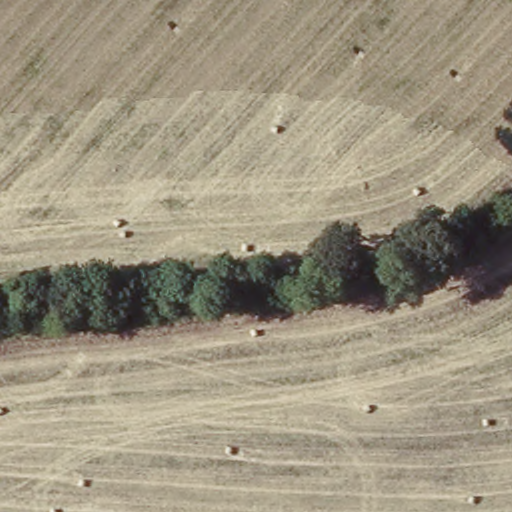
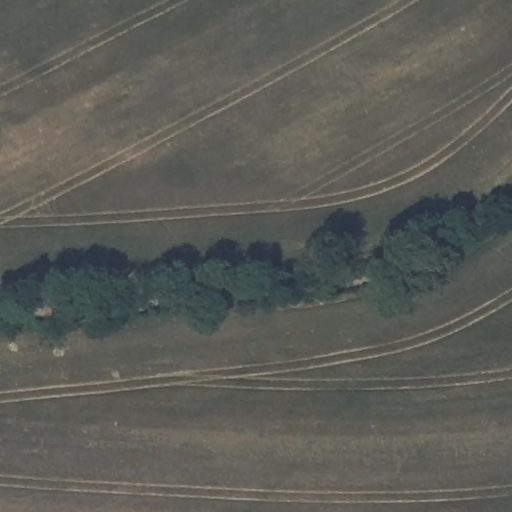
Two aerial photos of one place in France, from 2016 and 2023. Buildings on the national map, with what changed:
[]

